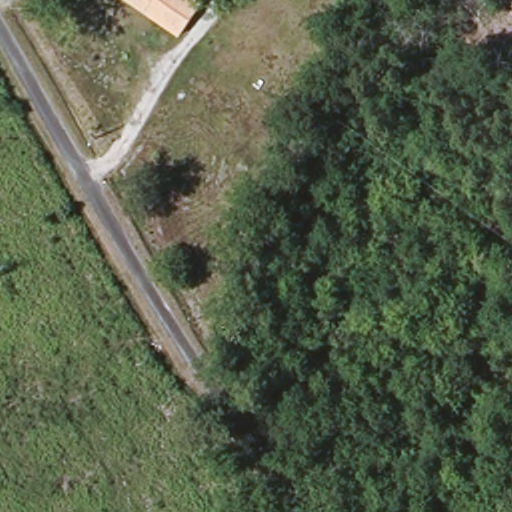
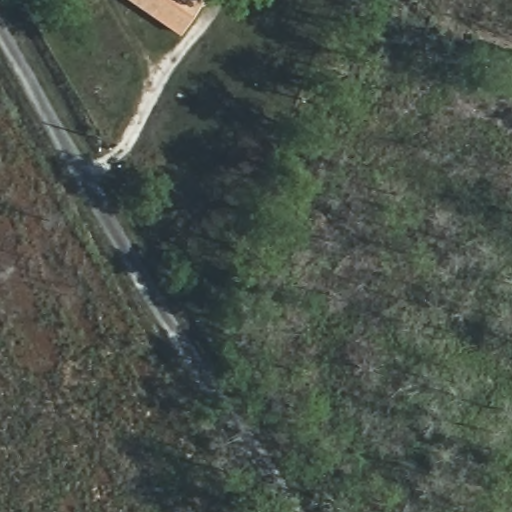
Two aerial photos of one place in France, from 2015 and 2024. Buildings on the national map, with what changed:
unchanged [(173,39),(121,0),(194,0),(198,3),(173,39)]

